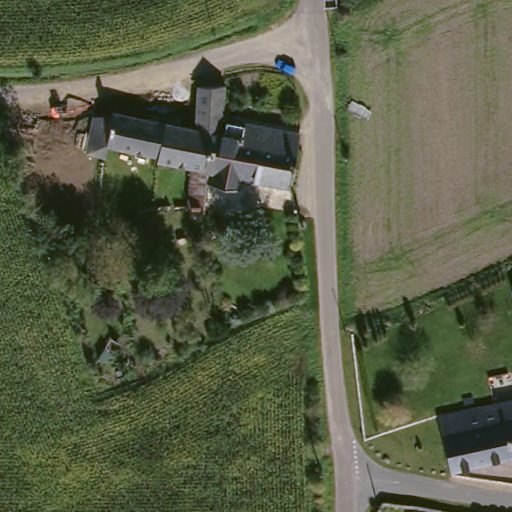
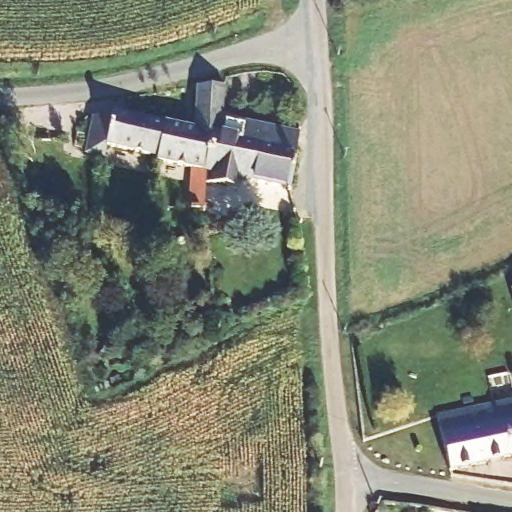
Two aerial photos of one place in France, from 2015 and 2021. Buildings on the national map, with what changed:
unchanged [(164,157),(111,146),(110,159),(91,155),(97,118),(115,117),(116,114),(200,117),(201,86),(229,85),(227,120),(222,134),(211,170),(211,186),(210,213),(196,209),(198,168),(163,161),(164,157)]
unchanged [(245,178),(243,190),(211,186),(211,170),(222,134),(229,135),(230,121),(305,132),(297,186),(245,178)]
unchanged [(512,402),(512,459),(453,473),(440,418),(512,402)]

